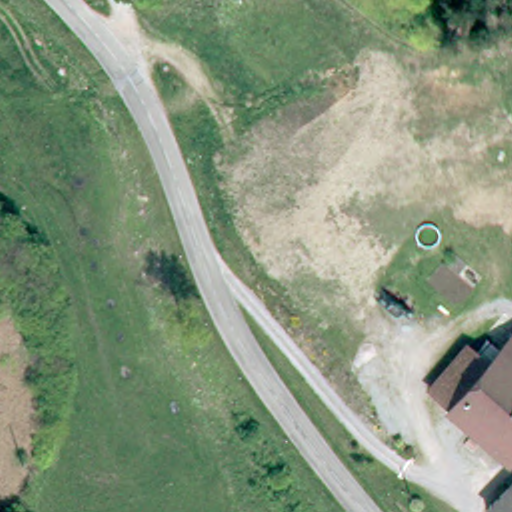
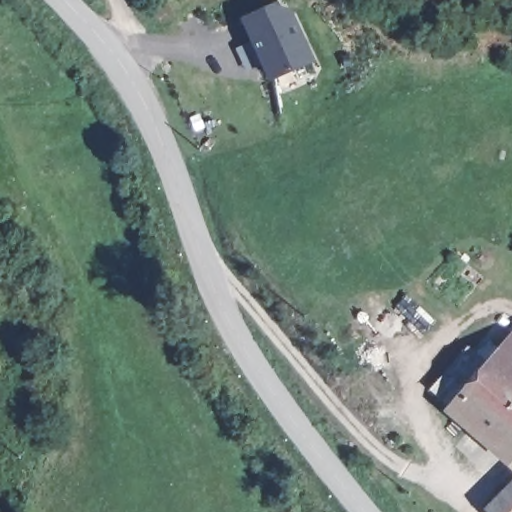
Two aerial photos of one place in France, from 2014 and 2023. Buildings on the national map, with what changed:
new [(241,17),(277,1),(279,6),(294,9),(316,60),(269,82),(241,17)]
unchanged [(503,460),(448,409),(487,366),(512,339),(512,450),(503,460)]
unchanged [(448,409),(426,389),(465,344),(487,366),(448,409)]
unchanged [(512,484),(512,512),(497,512),(490,504),(512,484)]

